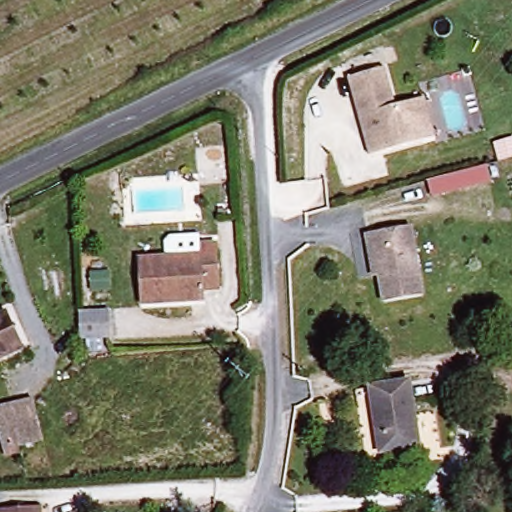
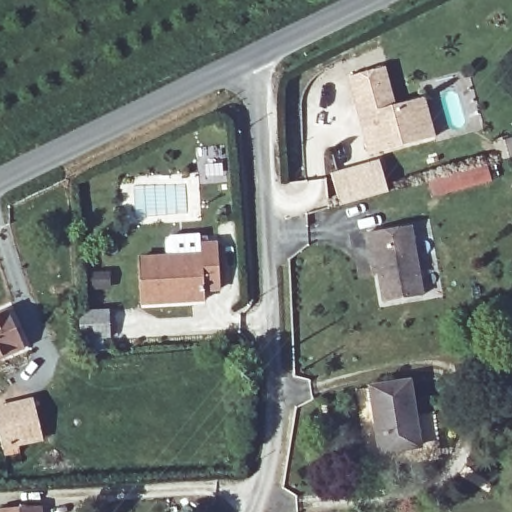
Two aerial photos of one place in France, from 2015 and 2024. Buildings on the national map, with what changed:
unchanged [(431,137),(416,141),(363,155),(358,136),(364,134),(362,125),(356,126),(344,76),(382,67),(391,105),(406,101),(421,97),(431,137)]
new [(377,161),(386,193),(341,206),(332,174),(377,161)]
unchanged [(409,228),(420,298),(381,304),(373,251),(367,252),(365,234),(409,228)]
unchanged [(218,290),(203,291),(203,304),(138,306),(136,260),(136,247),(198,245),(216,244),(218,290)]
unchanged [(6,312),(24,348),(0,359),(0,315),(6,312)]
unchanged [(118,317),(118,344),(91,343),(90,316),(118,317)]
unchanged [(416,379),(424,447),(371,454),(363,387),(416,379)]
unchanged [(6,405),(37,397),(49,445),(2,457),(0,449),(0,406),(6,405)]
unchanged [(8,511),(40,510),(40,512),(9,512),(8,511)]

